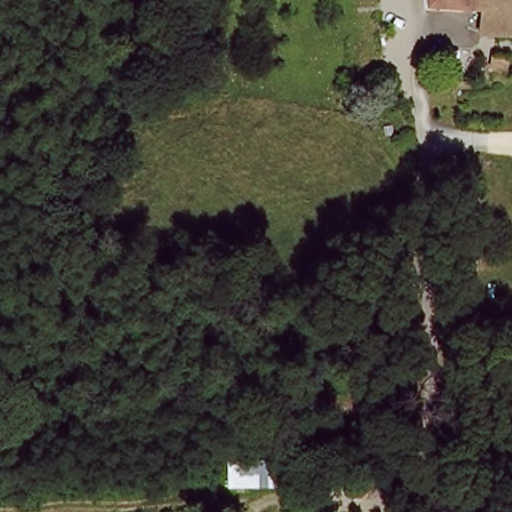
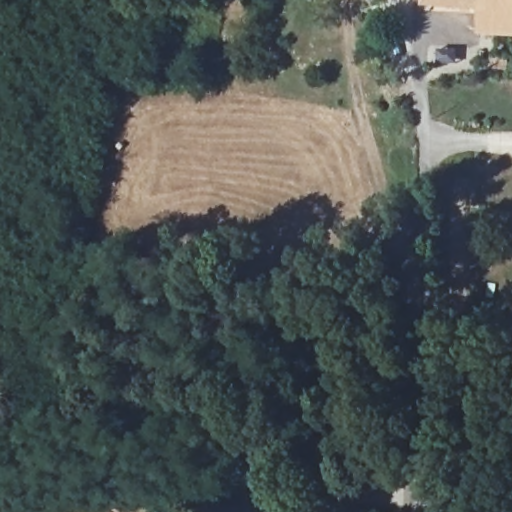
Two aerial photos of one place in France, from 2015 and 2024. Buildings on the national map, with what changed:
unchanged [(481,33),(481,7),(428,6),(428,0),(512,0),(512,32),(481,33)]
unchanged [(512,59),(511,72),(498,71),(499,58),(512,59)]
unchanged [(273,461),(276,492),(228,493),(226,462),(273,461)]

